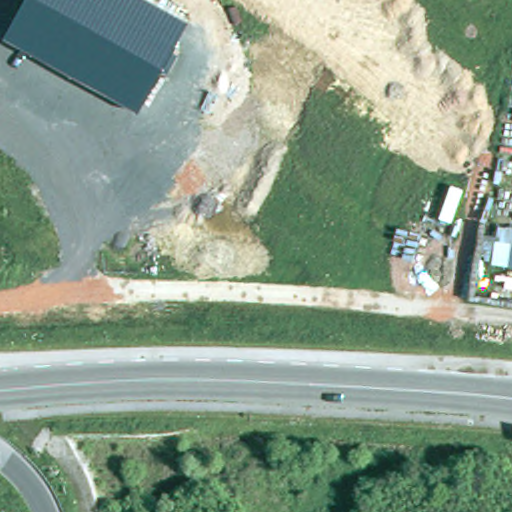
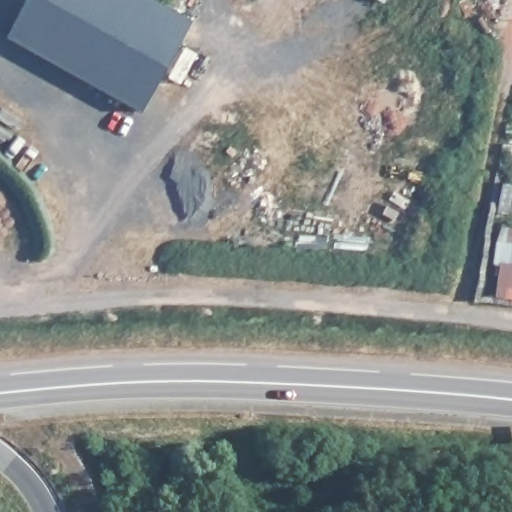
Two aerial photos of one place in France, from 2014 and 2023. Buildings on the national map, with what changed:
unchanged [(192,20),(141,109),(4,35),(25,0),(156,0),(192,20)]
unchanged [(512,264),(491,262),(492,256),(479,254),(483,230),(496,233),(498,225),(512,226),(512,264)]

